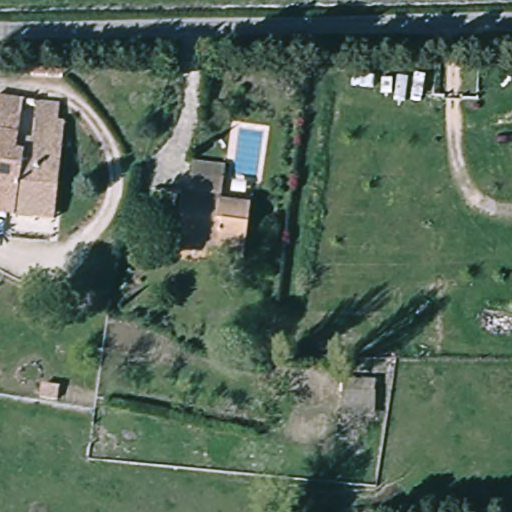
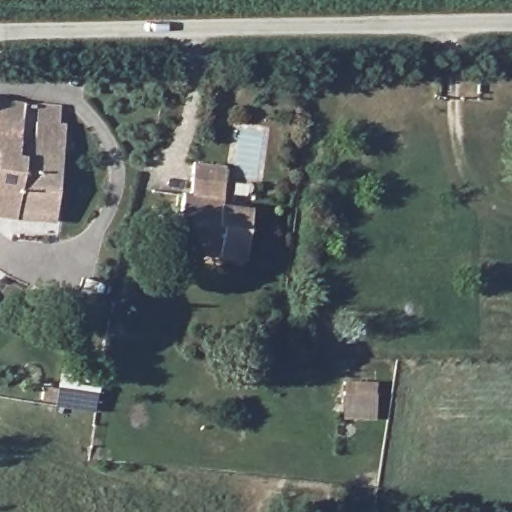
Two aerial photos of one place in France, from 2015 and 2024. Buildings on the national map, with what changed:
unchanged [(41,156),(58,159),(50,222),(15,219),(15,213),(0,211),(0,100),(46,105),(41,156)]
unchanged [(220,199),(248,202),(241,266),(221,263),(182,258),(186,218),(178,217),(179,189),(189,189),(190,161),(223,165),(220,199)]
unchanged [(343,361),(383,363),(384,430),(343,423),(343,361)]

